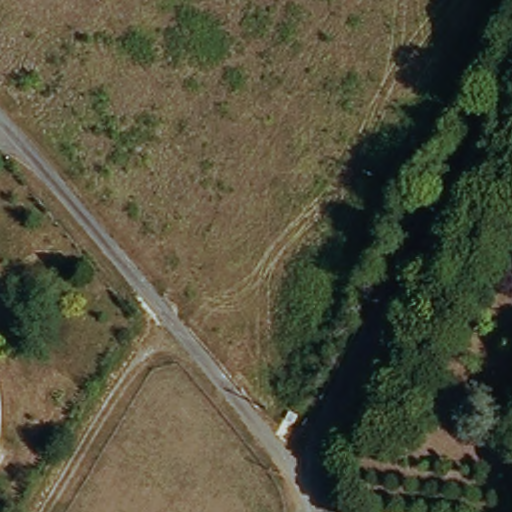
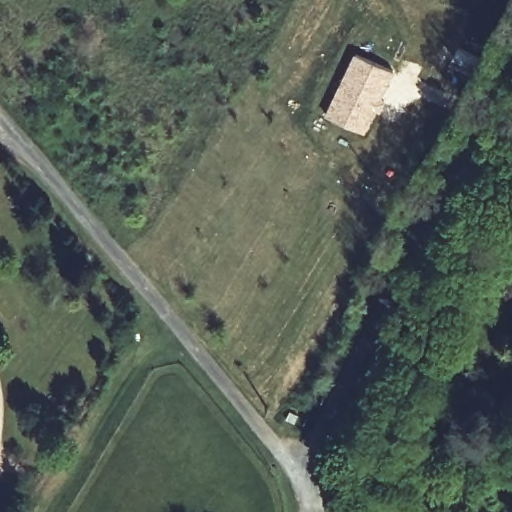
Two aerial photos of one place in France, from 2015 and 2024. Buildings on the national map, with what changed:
new [(354,52),(395,74),(365,134),(325,113),(354,52)]

